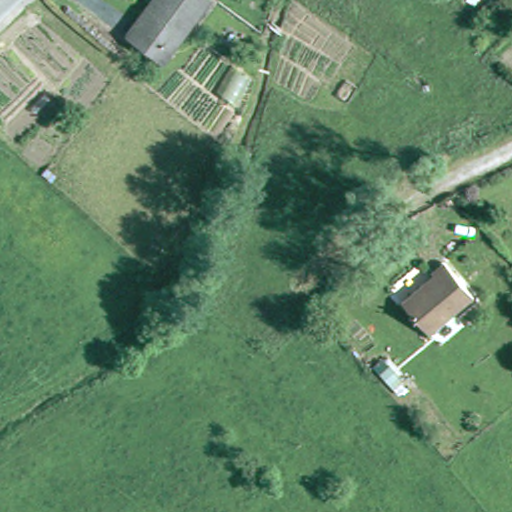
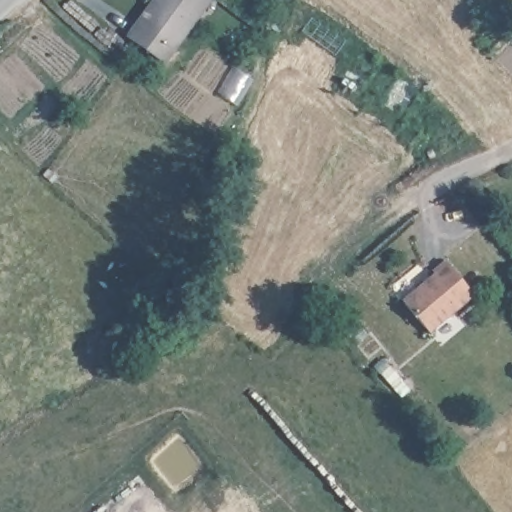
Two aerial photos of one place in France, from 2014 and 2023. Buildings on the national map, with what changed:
unchanged [(149,0),(203,0),(158,62),(122,36),(149,0)]
unchanged [(430,334),(402,302),(433,274),(431,272),(443,261),(473,296),(430,334)]

